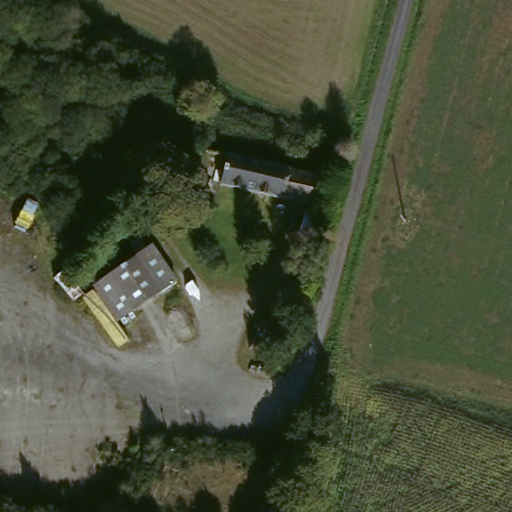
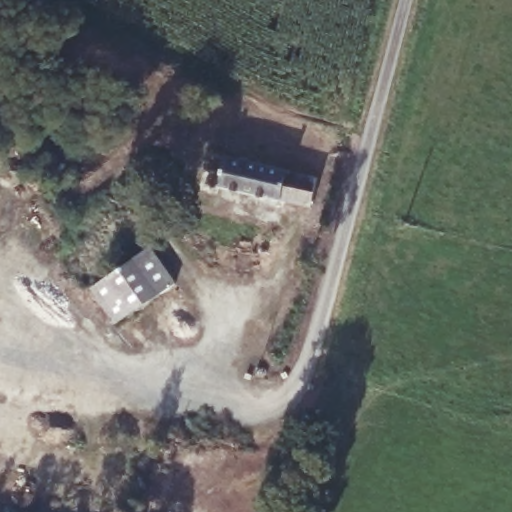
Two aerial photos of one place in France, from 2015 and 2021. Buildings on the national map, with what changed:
unchanged [(311,205),(220,180),(226,154),(318,176),(311,205)]
unchanged [(171,275),(124,328),(89,298),(131,245),(171,275)]

